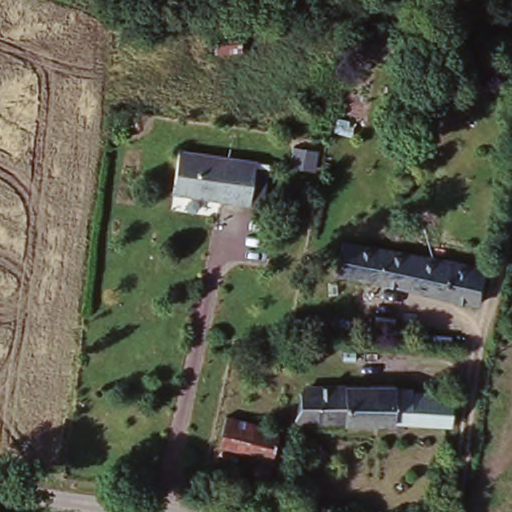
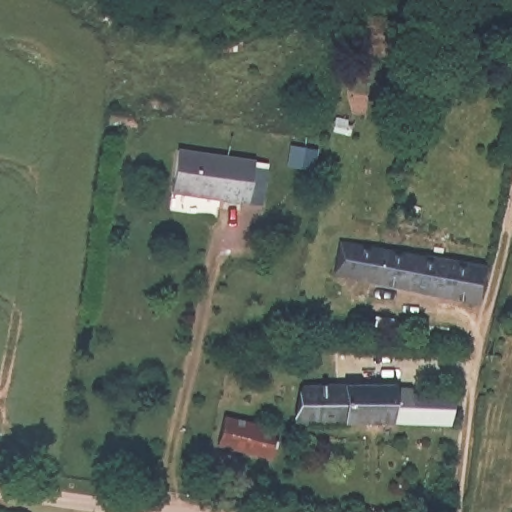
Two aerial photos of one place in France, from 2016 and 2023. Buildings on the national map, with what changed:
unchanged [(236,33),(237,52),(213,56),(212,36),(236,33)]
unchanged [(172,201),(177,156),(259,166),(253,205),(172,201)]
unchanged [(338,243),(386,251),(482,275),(476,309),(332,278),(338,243)]
unchanged [(393,426),(308,420),(315,385),(395,394),(453,408),(447,445),(393,426)]
unchanged [(221,454),(226,420),(280,430),(273,462),(237,456),(221,454)]

